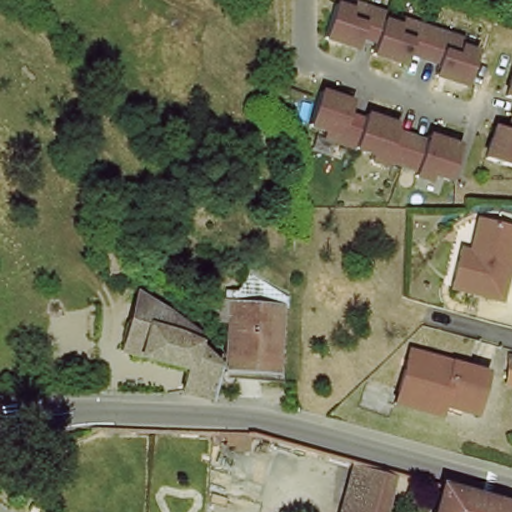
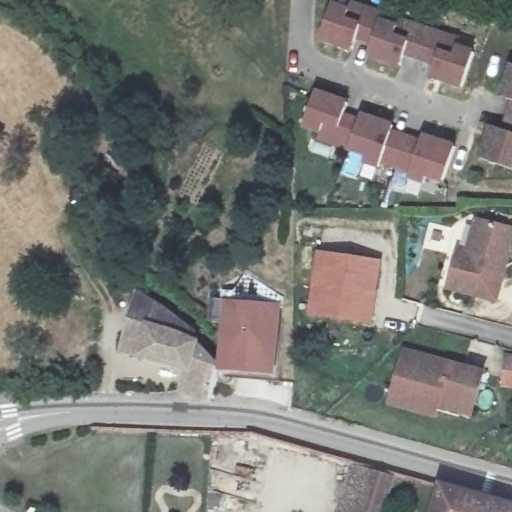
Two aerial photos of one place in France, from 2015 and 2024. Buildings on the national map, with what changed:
unchanged [(448,31),(445,42),(487,55),(476,94),(435,80),(439,65),(428,62),(410,56),(406,74),(371,64),(377,46),(357,40),(352,59),(318,50),(320,47),(329,10),(360,20),(364,12),(385,17),(382,26),(415,37),(419,24),(437,28),(448,31)]
unchanged [(435,145),(437,132),(468,141),(455,183),(426,175),(422,187),(402,178),(405,166),(372,157),(370,165),(354,160),(342,155),(343,147),(302,137),(314,98),(353,109),(351,120),(365,124),(381,129),(382,117),(416,127),(413,138),(435,145)]
unchanged [(497,166),(508,126),(512,128),(512,170),(497,166)]
unchanged [(497,303),(450,288),(460,250),(470,253),(480,220),(485,221),(512,229),(512,243),(497,303)]
new [(313,250),(382,259),(372,325),(305,317),(313,250)]
unchanged [(187,397),(190,378),(124,358),(140,300),(200,336),(199,356),(221,375),(213,398),(212,403),(187,397)]
unchanged [(227,340),(229,315),(280,318),(275,374),(227,368),(227,340)]
unchanged [(396,419),(399,400),(408,348),(452,355),(486,359),(475,421),(456,418),(442,416),(440,425),(396,419)]
unchanged [(402,476),(392,512),(342,512),(355,462),(361,465),(402,476)]
unchanged [(512,501),(512,512),(428,512),(436,479),(462,486),(512,501)]

